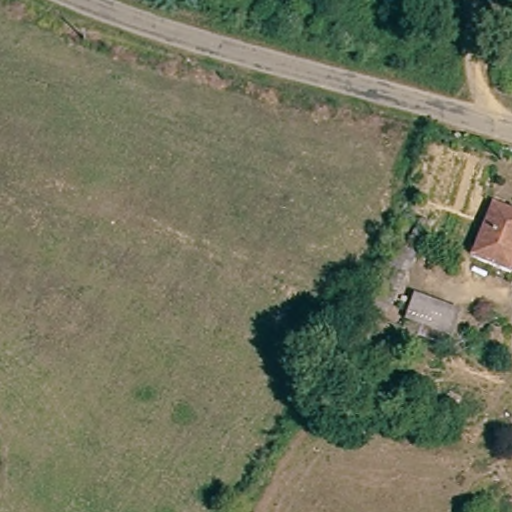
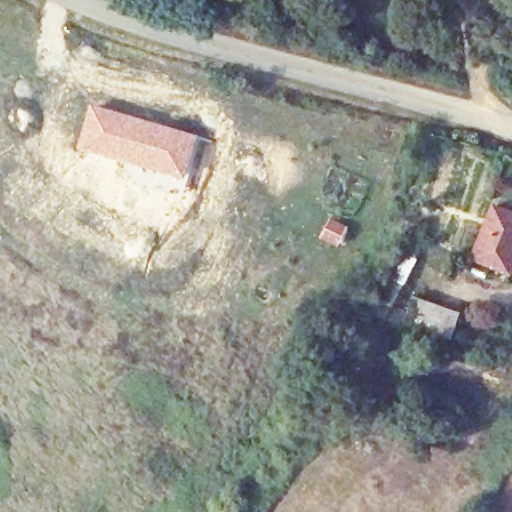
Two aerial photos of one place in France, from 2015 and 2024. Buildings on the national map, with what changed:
new [(91,102),(199,134),(184,182),(128,166),(78,148),(91,102)]
unchanged [(474,256),(496,200),(512,207),(512,257),(507,270),(474,256)]
unchanged [(414,294),(462,310),(453,338),(406,323),(414,294)]

